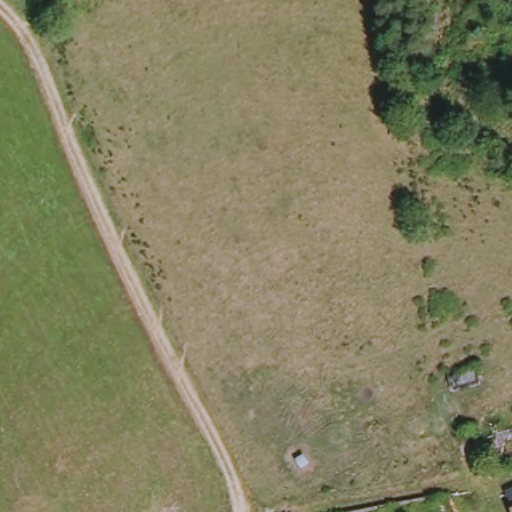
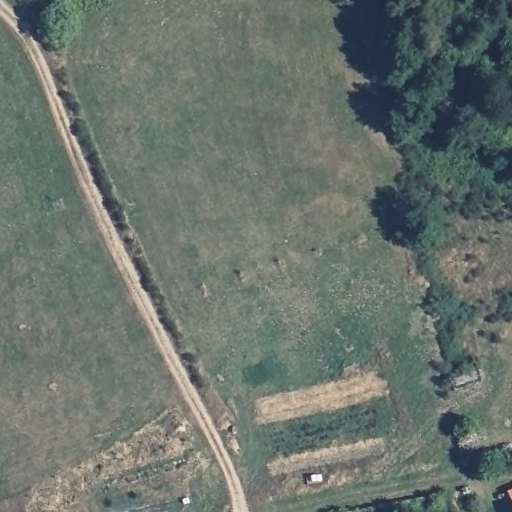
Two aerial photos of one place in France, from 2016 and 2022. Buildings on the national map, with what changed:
unchanged [(512,510),(512,512),(509,512),(509,511),(512,510)]

